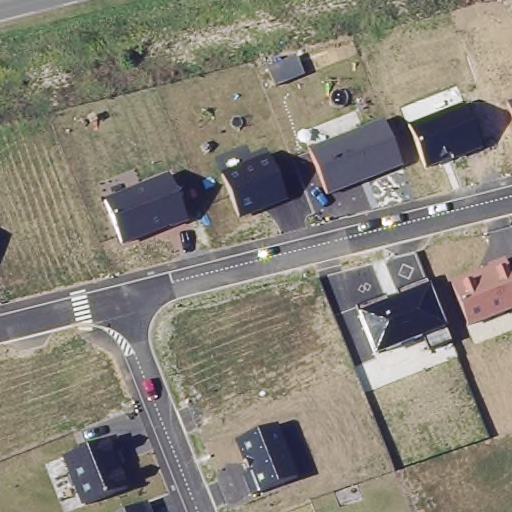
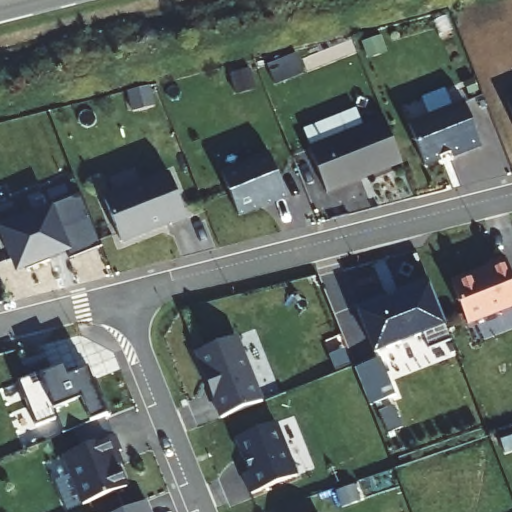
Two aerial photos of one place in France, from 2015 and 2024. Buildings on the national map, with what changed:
new [(299,55),(304,75),(274,83),(269,63),(299,55)]
unchanged [(507,101),(512,100),(512,114),(507,101)]
unchanged [(408,125),(464,103),(483,148),(426,169),(408,125)]
new [(304,127),(357,107),(364,125),(311,146),(304,127)]
unchanged [(404,166),(328,195),(309,147),(311,146),(364,125),(384,119),(404,166)]
unchanged [(289,199),(240,218),(221,171),(271,152),(289,199)]
unchanged [(188,220),(123,245),(104,199),(170,173),(188,220)]
new [(9,252),(0,228),(0,219),(23,211),(27,221),(49,212),(48,209),(81,195),(101,249),(68,261),(65,252),(48,260),(49,262),(25,272),(16,250),(23,268),(16,271),(9,252)]
unchanged [(486,265),(506,257),(512,274),(512,311),(469,327),(451,281),(488,267),(486,265)]
unchanged [(431,286),(446,327),(452,341),(429,350),(423,337),(375,355),(359,313),(357,306),(386,296),(388,302),(401,297),(398,290),(427,279),(431,286)]
new [(264,400),(221,417),(196,353),(239,335),(264,400)]
new [(50,368),(52,370),(65,365),(69,376),(88,368),(106,417),(90,423),(63,433),(58,416),(36,425),(19,382),(50,368)]
unchanged [(236,440),(278,423),(298,477),(251,495),(243,473),(248,471),(236,440)]
unchanged [(128,487),(81,505),(63,454),(115,436),(124,461),(120,462),(128,487)]
unchanged [(153,512),(121,512),(148,500),(153,512)]

